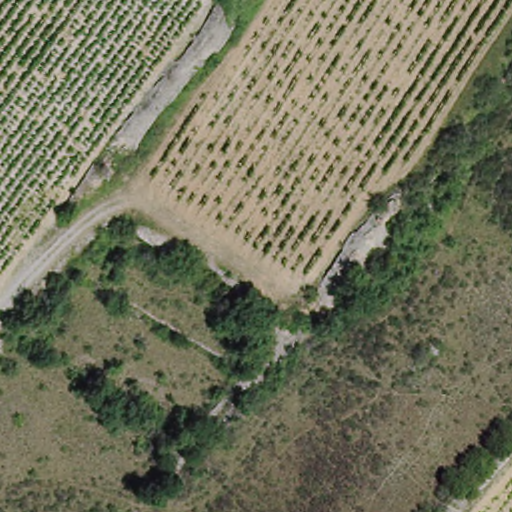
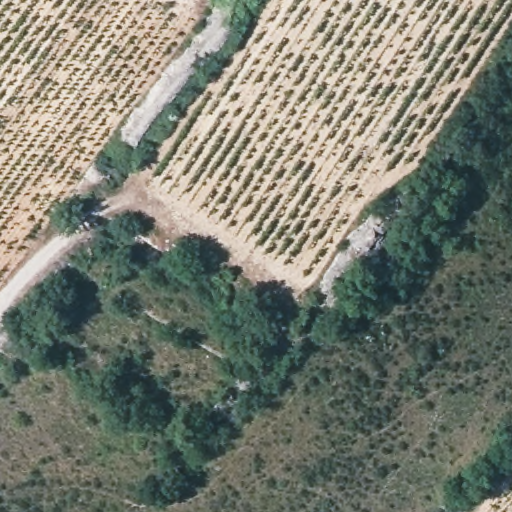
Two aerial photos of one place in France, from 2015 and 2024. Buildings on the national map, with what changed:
unchanged [(102,179),(89,197),(80,191),(94,171),(102,179)]

